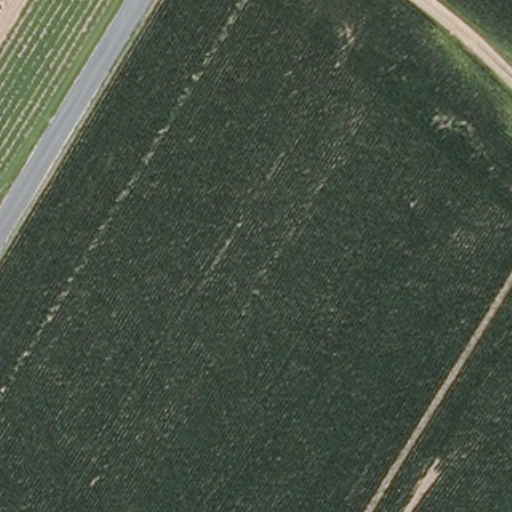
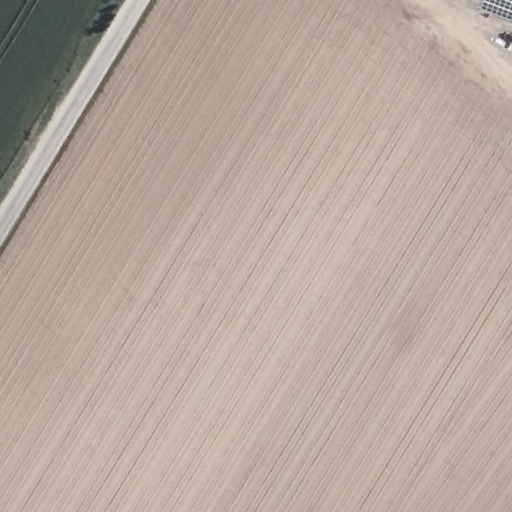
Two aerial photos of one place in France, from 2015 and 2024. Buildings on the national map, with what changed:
new [(481,7),(484,0),(512,0),(512,18),(481,7)]

